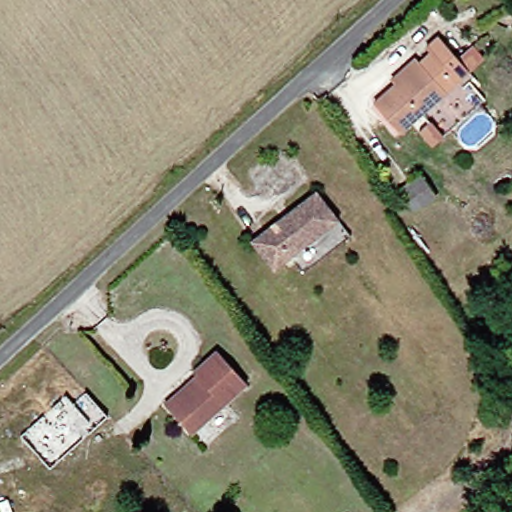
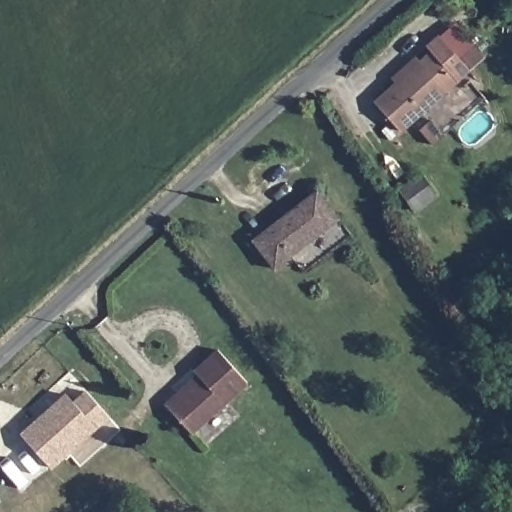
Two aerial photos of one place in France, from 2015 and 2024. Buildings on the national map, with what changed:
unchanged [(420,53),(434,44),(460,76),(391,137),(367,106),(388,86),(386,81),(407,62),(412,66),(422,58),(420,53)]
unchanged [(429,196),(412,215),(397,200),(413,182),(429,196)]
unchanged [(306,189),(330,219),(265,272),(242,242),(306,189)]
unchanged [(208,352),(238,388),(182,440),(158,409),(172,395),(190,378),(186,372),(208,352)]
new [(48,465),(20,429),(68,392),(76,402),(90,391),(110,417),(48,465)]

